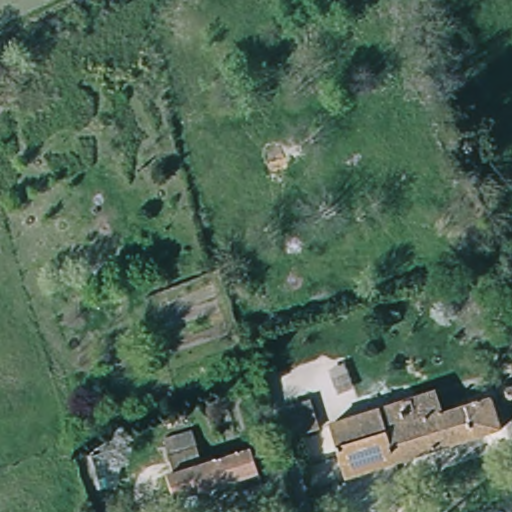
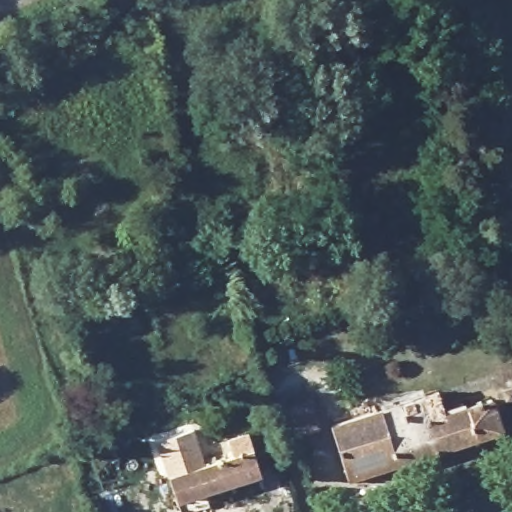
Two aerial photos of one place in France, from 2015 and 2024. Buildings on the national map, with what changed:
unchanged [(505,401),(503,391),(512,388),(512,399),(505,401)]
unchanged [(503,431),(348,480),(331,424),(437,390),(445,412),(493,397),(503,431)]
unchanged [(315,398),(322,425),(300,431),(292,405),(315,398)]
unchanged [(260,476),(176,501),(168,476),(175,473),(164,438),(192,430),(203,464),(252,450),(260,476)]

